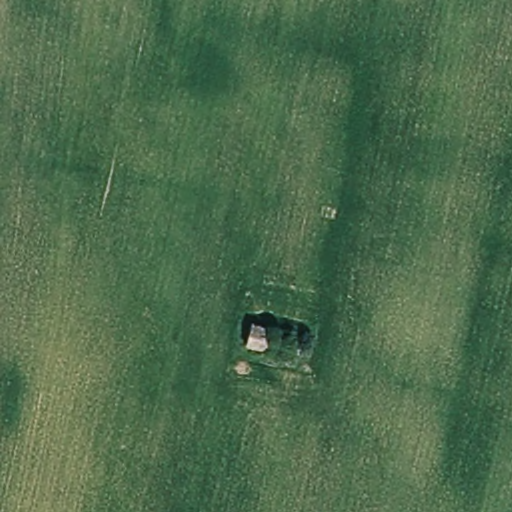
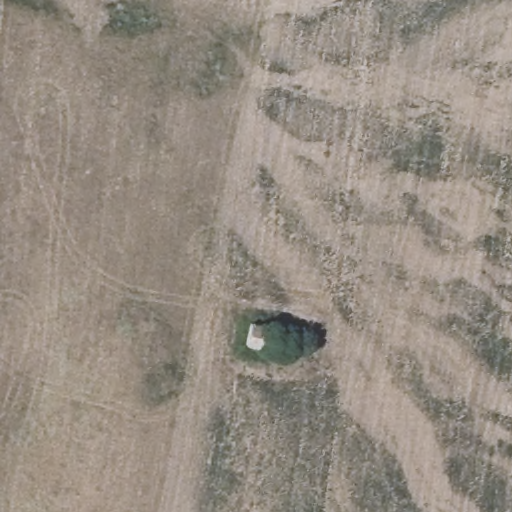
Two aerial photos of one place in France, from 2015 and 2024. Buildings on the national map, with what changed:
unchanged [(282,337),(278,360),(238,353),(242,329),(282,337)]

